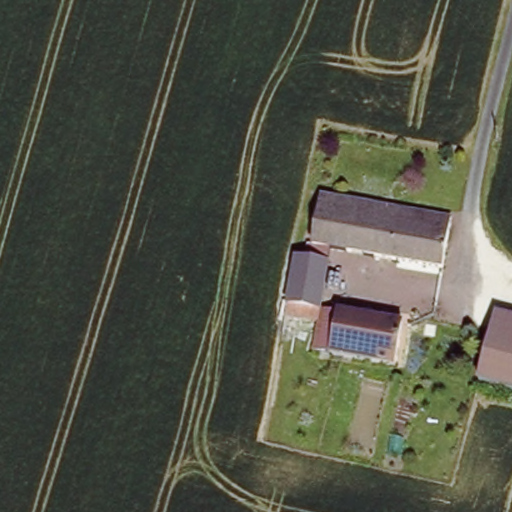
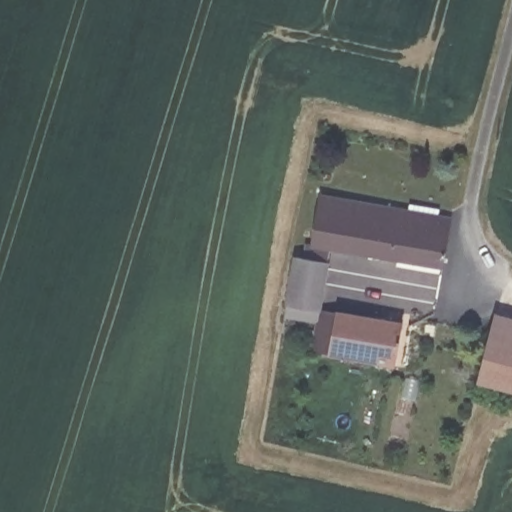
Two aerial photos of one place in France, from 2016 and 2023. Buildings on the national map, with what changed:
unchanged [(297,260),(303,261),(307,247),(312,248),(323,201),(453,224),(443,270),(331,251),(319,311),(404,330),(393,371),(304,351),(312,327),(286,321),(297,260)]
unchanged [(495,315),(512,320),(512,395),(472,384),(495,315)]

